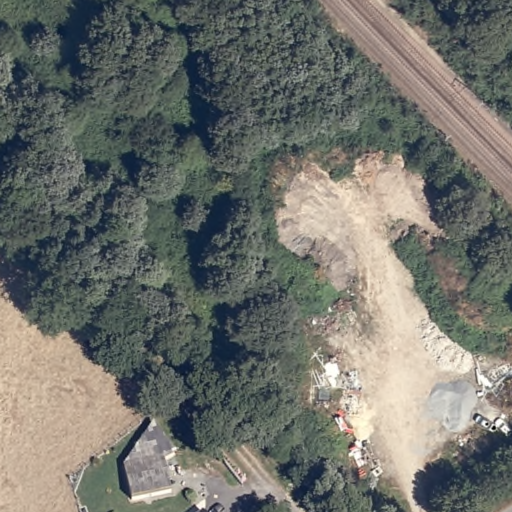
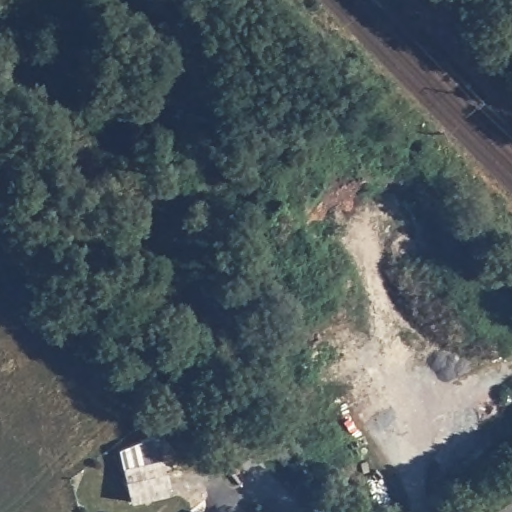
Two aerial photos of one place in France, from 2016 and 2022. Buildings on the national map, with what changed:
unchanged [(140,444),(162,460),(162,494),(134,505),(121,470),(140,444)]
unchanged [(212,511),(212,512),(211,512),(212,511)]

